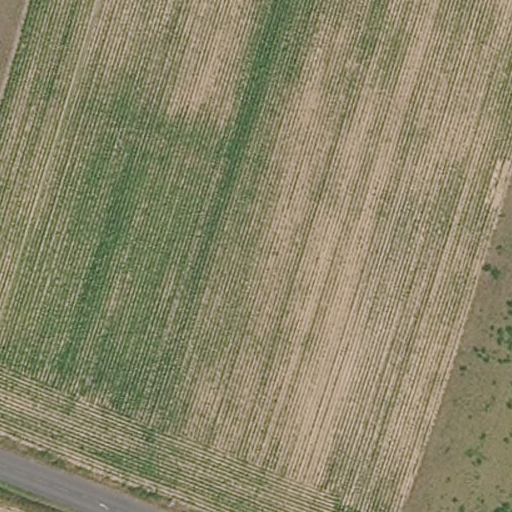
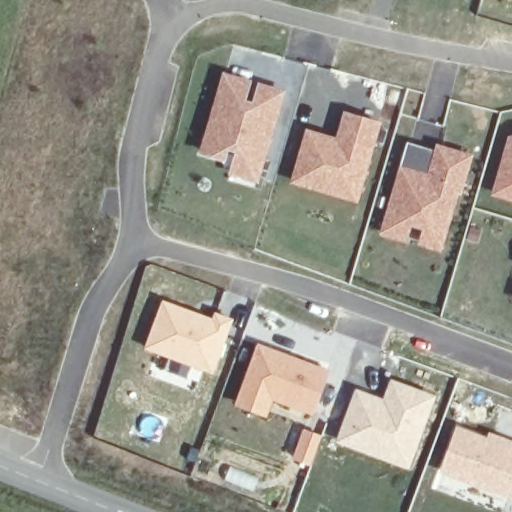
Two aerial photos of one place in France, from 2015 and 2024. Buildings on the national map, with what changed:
new [(223,79),(247,85),(239,111),(252,115),(259,89),(280,95),(254,182),(230,175),(237,150),(225,147),(221,161),(201,155),(205,141),(223,79)]
new [(340,198),(292,184),(307,135),(341,145),(344,135),(340,134),(345,117),(377,127),(360,183),(354,202),(340,198)]
new [(512,139),(512,198),(495,193),(511,140),(512,139)]
new [(420,179),(429,182),(439,151),(470,160),(456,206),(454,205),(445,238),(410,228),(406,241),(382,234),(400,173),(420,179)]
new [(162,298),(212,316),(214,310),(234,317),(213,375),(143,348),(162,298)]
new [(257,342),(330,369),(313,416),(273,401),(266,418),(233,406),(257,342)]
new [(355,387),(382,397),(390,377),(437,395),(409,471),(334,442),(355,387)]
new [(487,435),(489,430),(512,439),(512,491),(509,500),(437,472),(456,423),(487,435)]
new [(303,428),(322,435),(311,466),(292,459),(303,428)]

